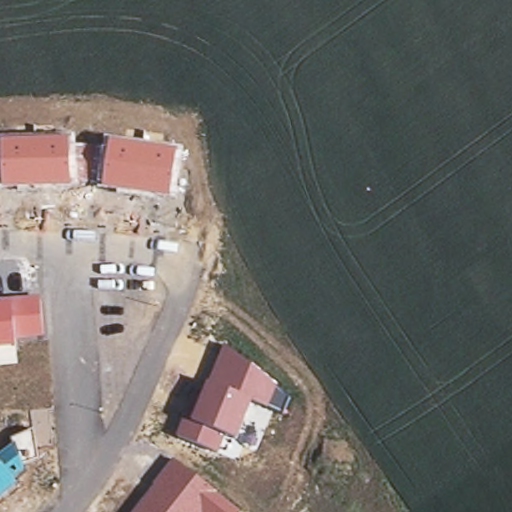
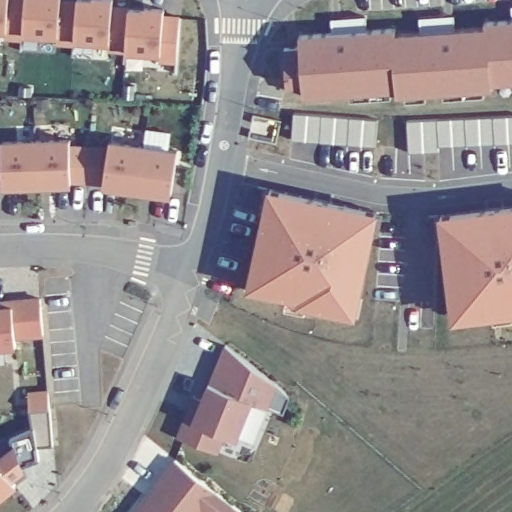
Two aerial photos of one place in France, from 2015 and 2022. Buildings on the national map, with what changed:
new [(78,0),(79,0),(114,0),(114,7),(164,9),(164,16),(181,17),(179,58),(163,58),(163,53),(110,49),(110,42),(76,39),(76,42),(58,40),(59,35),(26,32),(25,37),(7,35),(8,30),(0,29),(0,0),(70,0),(78,0)]
new [(399,95),(399,90),(393,90),(394,98),(353,100),(353,93),(306,96),(306,84),(289,86),(289,77),(286,48),(302,46),(301,35),(334,33),(333,18),(368,16),(369,30),(397,28),(397,34),(422,32),(421,17),(456,15),(457,30),(487,28),(487,23),(512,22),(512,90),(500,91),(499,83),(494,83),(494,88),(486,88),(487,97),(446,99),(446,91),(428,92),(429,101),(408,102),(408,94),(399,95)]
new [(296,112),(379,119),(378,146),(294,140),(296,112)]
new [(512,115),(512,142),(441,146),(441,150),(411,152),(409,120),(512,115)]
unchanged [(75,146),(103,146),(104,137),(182,148),(176,199),(100,188),(71,185),(2,187),(0,187),(0,138),(75,136),(75,146)]
new [(378,212),(360,299),(340,294),(336,308),(302,302),(303,297),(269,289),(271,277),(253,274),(271,188),(378,212)]
new [(512,207),(512,311),(508,311),(508,308),(475,310),(474,300),(454,301),(443,214),(512,207)]
unchanged [(43,337),(14,339),(14,347),(0,348),(0,299),(41,296),(43,337)]
unchanged [(184,413),(193,416),(207,383),(224,345),(276,384),(289,397),(282,413),(268,409),(252,403),(238,440),(224,435),(217,452),(177,435),(184,413)]
unchanged [(12,439),(33,428),(38,459),(23,464),(24,471),(14,479),(18,485),(0,499),(0,456),(13,446),(12,439)]
unchanged [(216,491),(243,511),(243,512),(133,512),(174,459),(216,491)]

